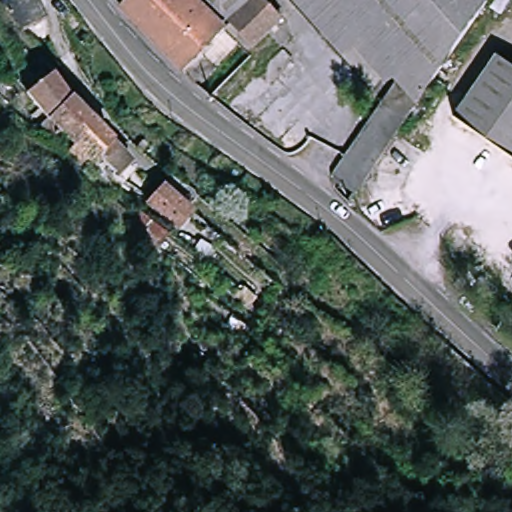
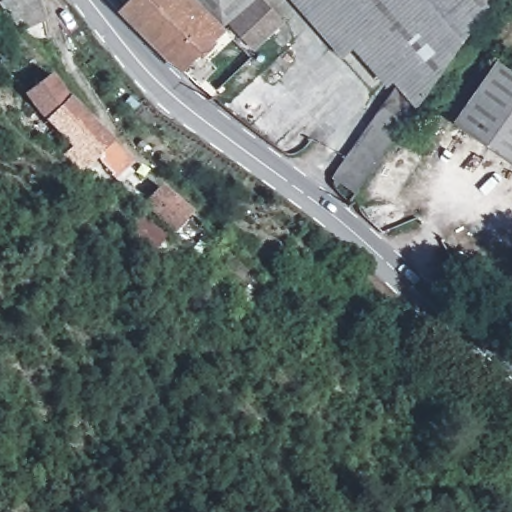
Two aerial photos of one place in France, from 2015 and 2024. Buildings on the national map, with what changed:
unchanged [(25,29),(2,3),(7,0),(40,0),(47,15),(25,29)]
unchanged [(136,0),(200,0),(224,27),(202,52),(214,65),(197,84),(129,6),(136,0)]
unchanged [(224,27),(200,0),(253,0),(224,27)]
unchanged [(253,0),(265,0),(282,17),(246,51),(224,27),(253,0)]
unchanged [(423,101),(401,86),(390,79),(372,92),(295,0),(491,0),(423,101)]
unchanged [(500,54),(512,63),(512,158),(507,154),(456,115),(500,54)]
unchanged [(50,72),(122,147),(130,162),(117,177),(97,161),(82,174),(65,157),(76,147),(66,137),(50,122),(44,128),(31,116),(39,107),(44,104),(30,89),(47,75),(50,72)]
unchanged [(342,170),(401,86),(423,101),(364,186),(342,170)]
unchanged [(178,229),(148,202),(155,196),(162,188),(192,215),(178,229)]
unchanged [(156,250),(128,226),(139,212),(170,232),(156,250)]

